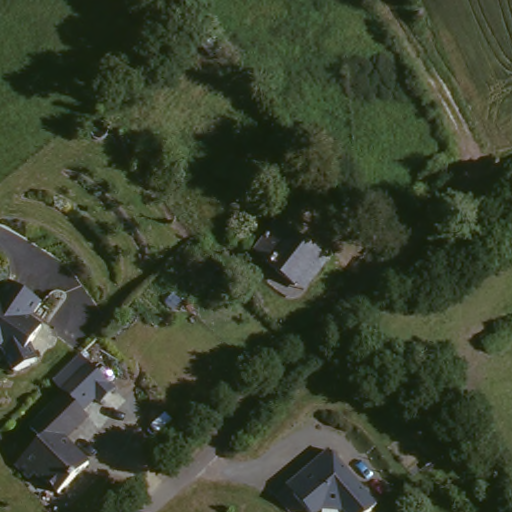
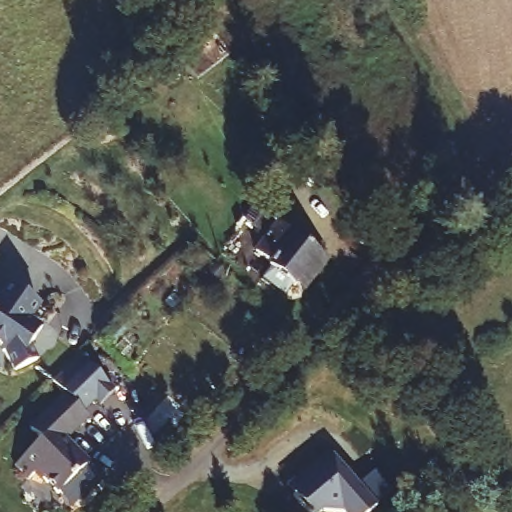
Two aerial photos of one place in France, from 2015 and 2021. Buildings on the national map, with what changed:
unchanged [(230,79),(215,91),(198,68),(213,57),(230,79)]
unchanged [(242,202),(248,190),(264,199),(273,204),(267,216),(256,210),(242,202)]
unchanged [(306,291),(258,252),(284,223),(291,213),(300,221),(292,229),(330,261),(306,291)]
unchanged [(248,218),(267,233),(246,259),(228,245),(248,218)]
unchanged [(0,345),(0,297),(9,283),(38,304),(31,320),(39,326),(31,344),(37,363),(15,372),(9,352),(0,345)]
unchanged [(55,381),(82,354),(114,386),(102,399),(96,395),(82,409),(64,390),(55,381)]
unchanged [(41,470),(36,473),(26,462),(47,442),(29,422),(64,390),(82,409),(85,412),(64,435),(87,460),(60,486),(41,470)]
unchanged [(324,452),(378,501),(368,512),(347,512),(344,510),(324,512),(307,512),(294,501),(286,493),(293,485),(324,452)]

